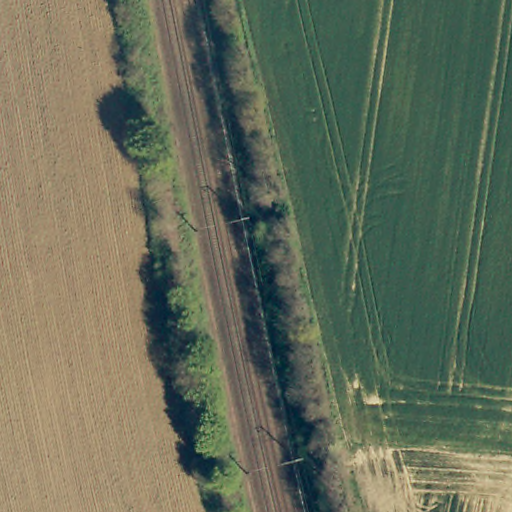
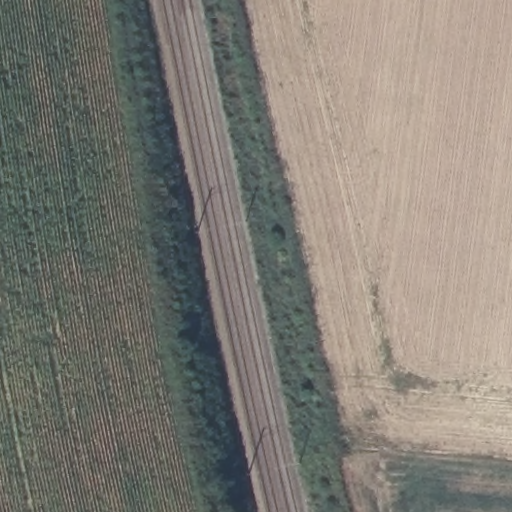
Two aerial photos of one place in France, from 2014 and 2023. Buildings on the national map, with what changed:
[]

